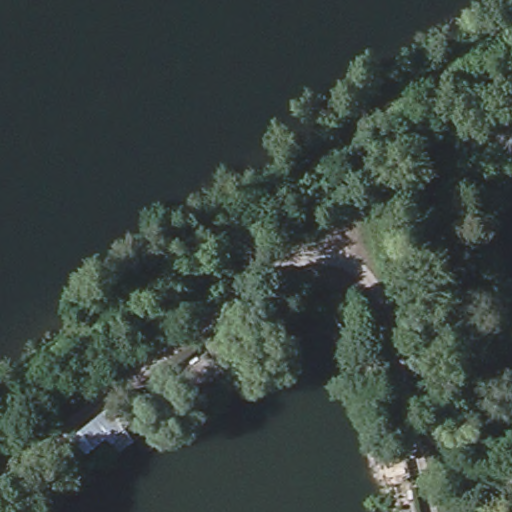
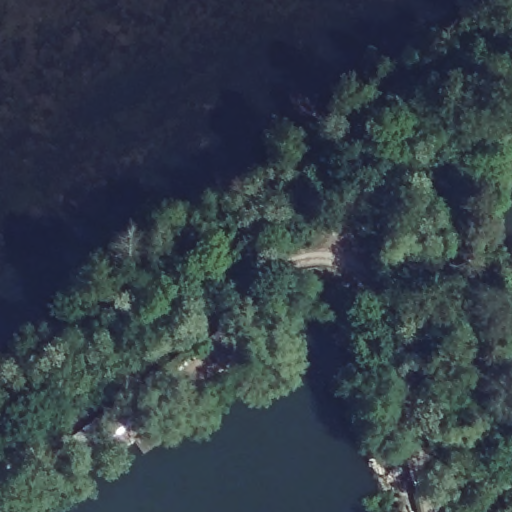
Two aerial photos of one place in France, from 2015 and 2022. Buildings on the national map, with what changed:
unchanged [(137,443),(118,456),(106,441),(86,457),(73,438),(115,406),(137,443)]

